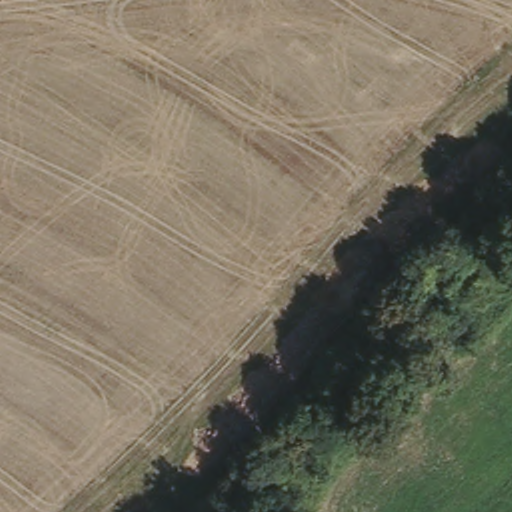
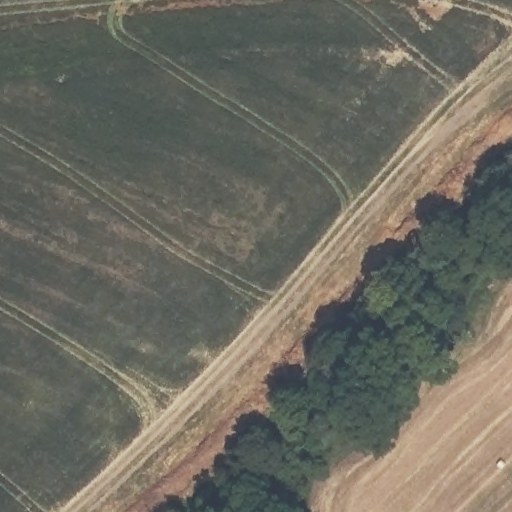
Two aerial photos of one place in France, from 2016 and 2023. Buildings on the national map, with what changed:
[]

